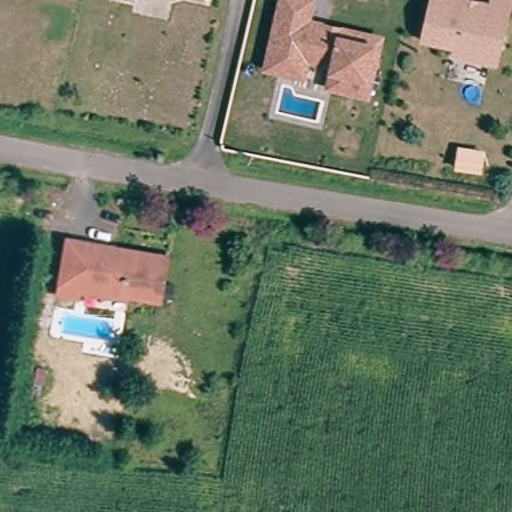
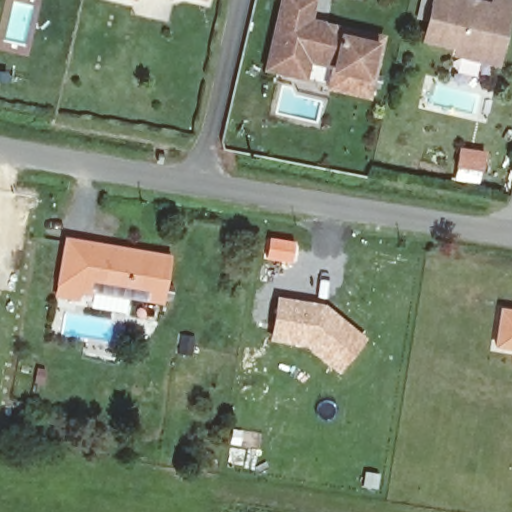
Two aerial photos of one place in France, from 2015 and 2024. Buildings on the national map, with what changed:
unchanged [(370,100),(327,90),(332,68),(310,63),(306,79),(265,69),(280,0),(317,0),(313,20),(386,35),(370,100)]
unchanged [(488,58),(467,53),(463,46),(431,38),(440,0),(476,0),(477,0),(482,2),(485,0),(487,0),(499,3),(500,0),(512,0),(512,31),(507,49),(505,62),(488,58)]
new [(268,237),(297,242),(293,263),(265,259),(268,237)]
unchanged [(166,259),(160,299),(84,286),(82,296),(57,293),(69,243),(166,259)]
new [(276,295),(324,304),(366,338),(337,373),(303,348),(267,341),(276,295)]
new [(512,311),(512,351),(495,348),(502,309),(512,311)]

